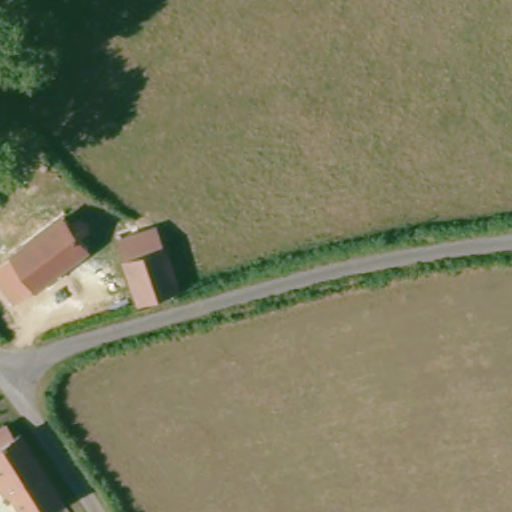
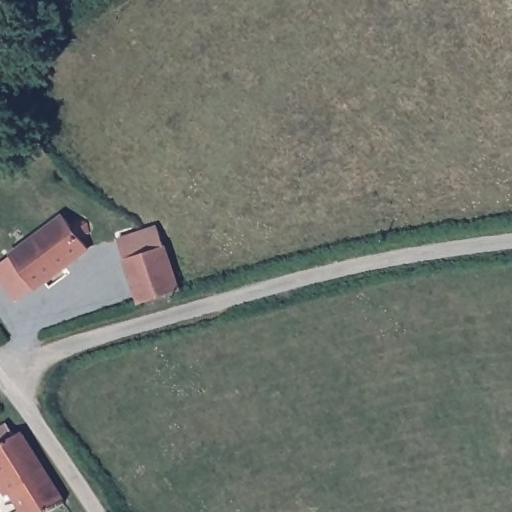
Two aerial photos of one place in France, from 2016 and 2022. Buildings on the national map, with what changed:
unchanged [(8,254),(19,245),(70,210),(78,220),(68,226),(86,250),(44,280),(32,288),(8,254)]
unchanged [(158,228),(178,295),(141,305),(120,239),(142,231),(158,228)]
unchanged [(55,512),(28,512),(6,473),(0,477),(0,431),(13,423),(21,437),(29,433),(70,503),(55,512)]

